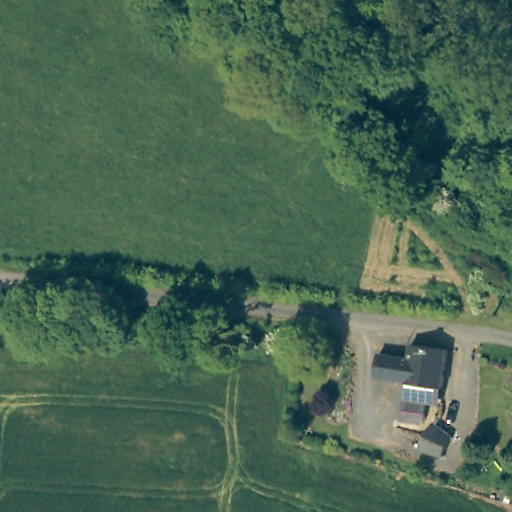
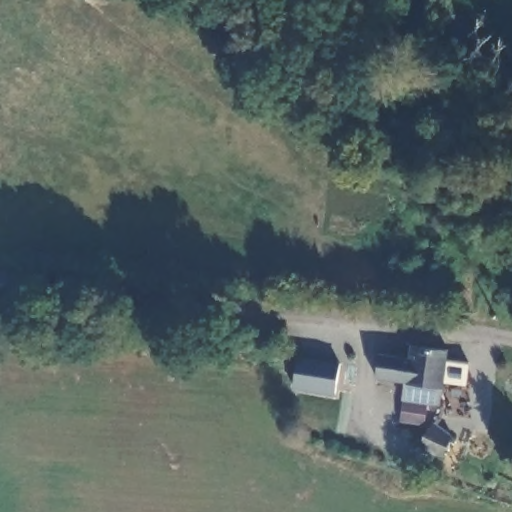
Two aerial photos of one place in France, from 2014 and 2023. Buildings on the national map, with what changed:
unchanged [(422,417),(398,416),(402,377),(371,374),(373,349),(404,352),(405,336),(444,341),(440,381),(439,399),(425,398),(422,417)]
new [(334,392),(292,386),(297,356),(340,362),(334,392)]
unchanged [(421,428),(429,413),(447,424),(442,447),(421,435),(421,428)]

